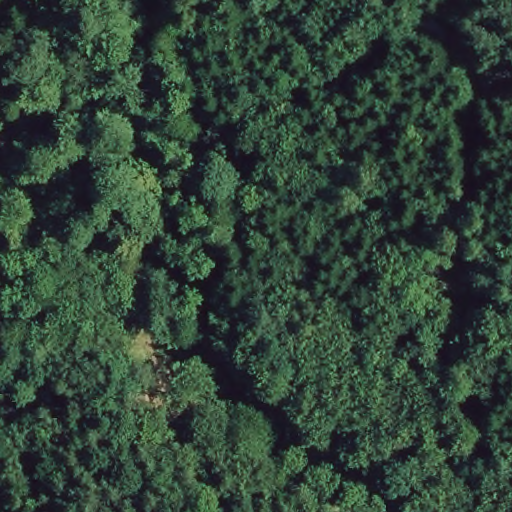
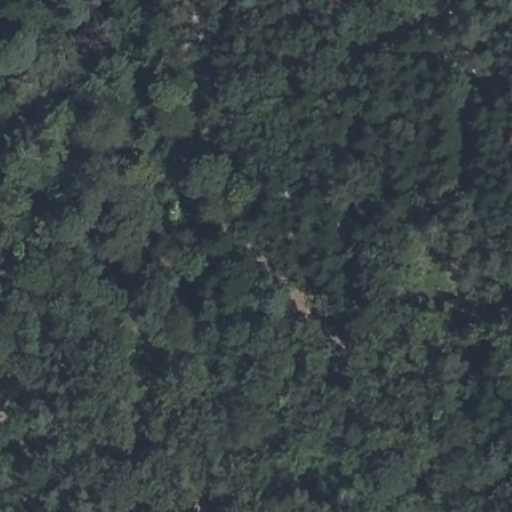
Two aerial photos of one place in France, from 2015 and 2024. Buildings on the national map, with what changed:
[]

